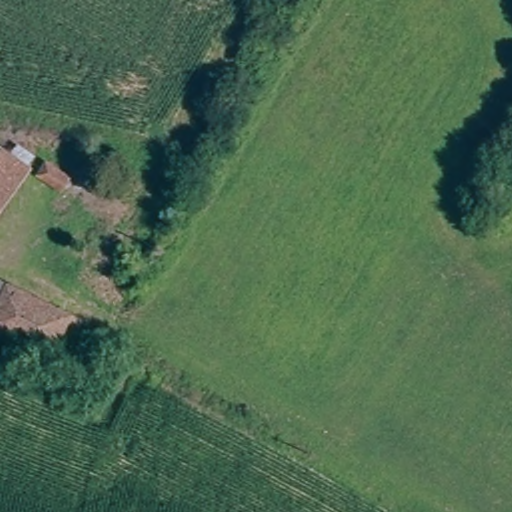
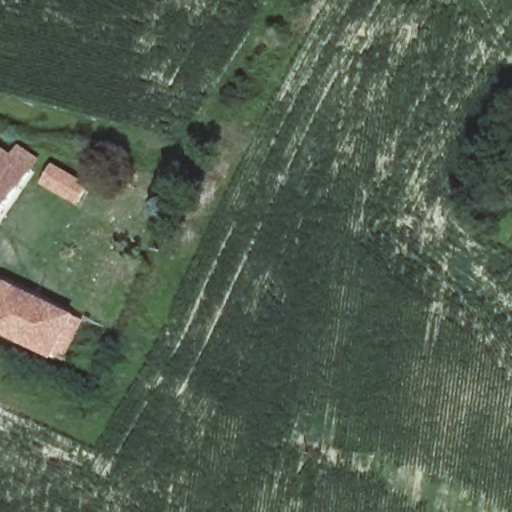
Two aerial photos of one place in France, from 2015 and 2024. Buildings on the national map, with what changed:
unchanged [(0,208),(0,151),(28,167),(0,208)]
unchanged [(0,281),(4,283),(0,293),(0,281)]
unchanged [(51,361),(0,336),(0,293),(4,283),(75,317),(51,361)]

